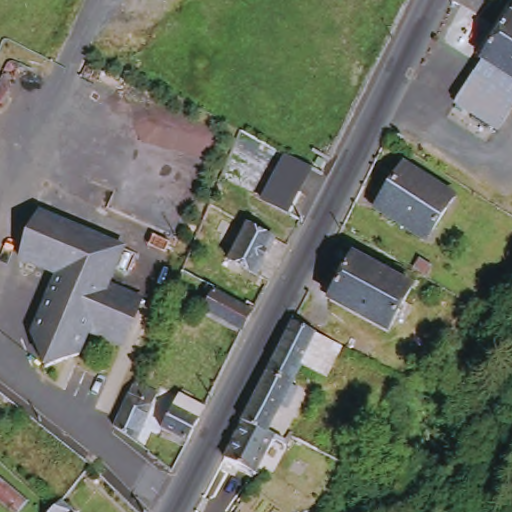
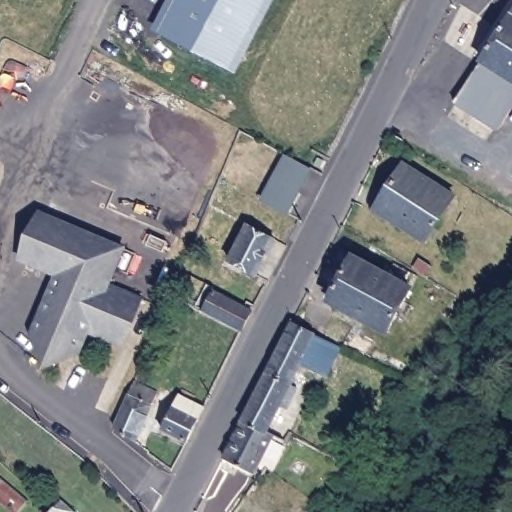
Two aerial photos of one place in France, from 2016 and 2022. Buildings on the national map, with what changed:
new [(272,0),(237,71),(166,35),(184,0),(272,0)]
unchanged [(476,91),(512,35),(512,114),(476,91)]
unchanged [(507,135),(465,108),(476,91),(512,114),(512,127),(507,135)]
unchanged [(271,208),(291,165),(318,177),(296,220),(271,208)]
unchanged [(431,245),(382,215),(410,170),(459,200),(431,245)]
unchanged [(92,335),(83,353),(51,367),(40,338),(64,278),(26,263),(46,218),(126,251),(112,285),(147,301),(127,348),(92,335)]
unchanged [(262,279),(236,265),(254,230),(279,244),(262,279)]
unchanged [(415,294),(393,338),(334,308),(356,265),(415,294)]
unchanged [(243,334),(217,320),(209,315),(217,298),(225,302),(252,316),(243,334)]
unchanged [(297,328),(346,352),(332,381),(326,379),(306,370),(296,391),(303,394),(293,413),(286,410),(271,438),(246,425),(297,328)]
unchanged [(160,402),(142,446),(120,430),(137,390),(160,402)]
unchanged [(167,433),(179,411),(185,399),(210,412),(204,425),(192,447),(167,433)]
unchanged [(271,438),(279,442),(260,478),(230,462),(246,425),(271,438)]
unchanged [(58,511),(60,512),(57,512),(58,511)]

